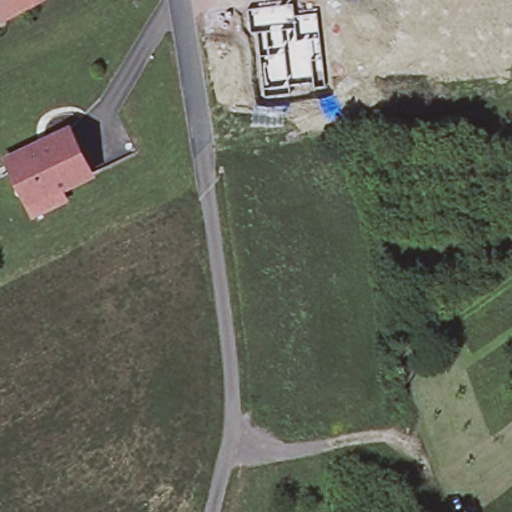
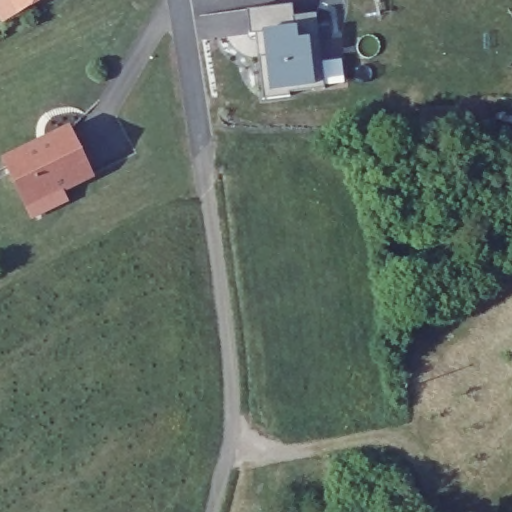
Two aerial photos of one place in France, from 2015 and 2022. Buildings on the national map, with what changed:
unchanged [(0,0),(43,0),(24,10),(12,18),(0,0)]
unchanged [(290,95),(265,98),(259,56),(268,55),(266,32),(250,34),(247,10),(292,3),(294,15),(316,12),(322,60),(325,90),(290,95)]
unchanged [(30,220),(20,200),(2,162),(63,131),(87,177),(54,194),(60,205),(30,220)]

